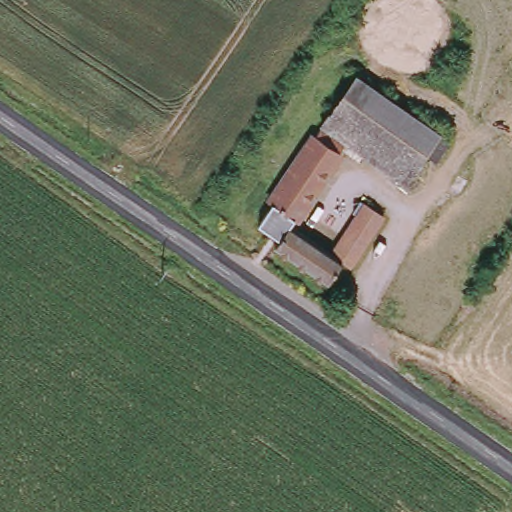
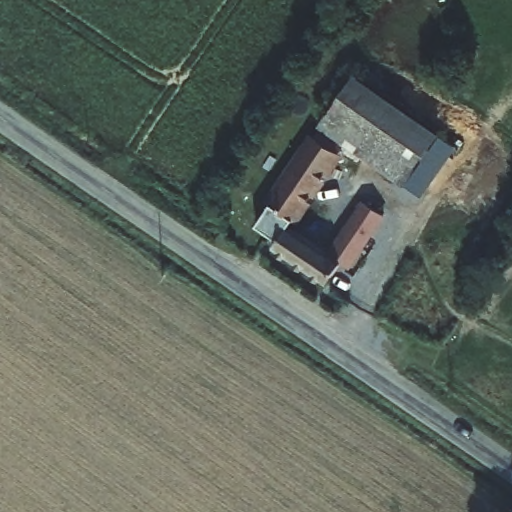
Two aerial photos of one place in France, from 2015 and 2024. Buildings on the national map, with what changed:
unchanged [(352,71),(453,140),(415,194),(341,143),(314,125),(352,71)]
unchanged [(314,125),(341,143),(287,223),(342,259),(326,286),(268,247),(277,238),(249,218),(314,125)]

